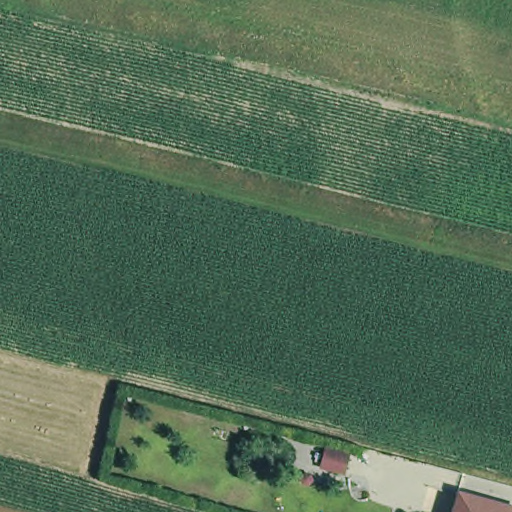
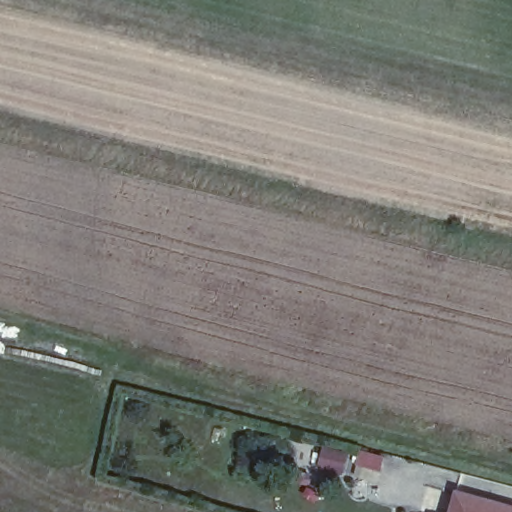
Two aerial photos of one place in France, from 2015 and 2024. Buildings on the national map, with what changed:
unchanged [(452,512),(460,485),(512,500),(512,512),(452,512)]

